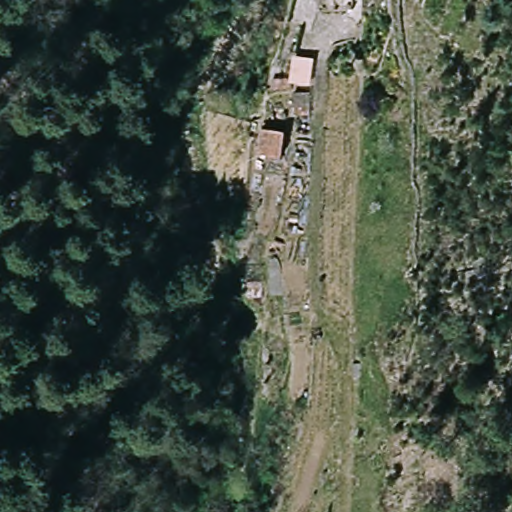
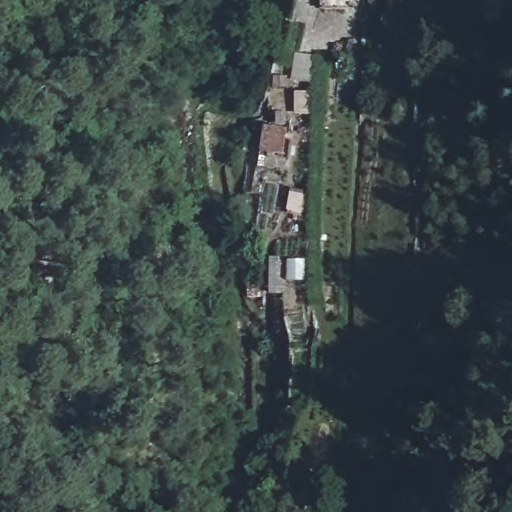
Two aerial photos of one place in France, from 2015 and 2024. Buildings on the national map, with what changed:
unchanged [(321,0),(345,0),(345,9),(321,8),(321,0)]
unchanged [(316,57),(311,85),(293,81),(293,87),(272,88),(272,79),(290,77),(294,54),(316,57)]
unchanged [(311,91),(311,114),(294,115),(294,91),(311,91)]
unchanged [(289,128),(288,154),(263,153),(264,126),(289,128)]

